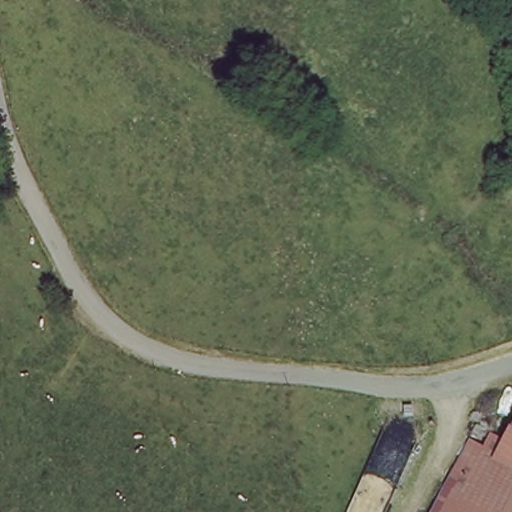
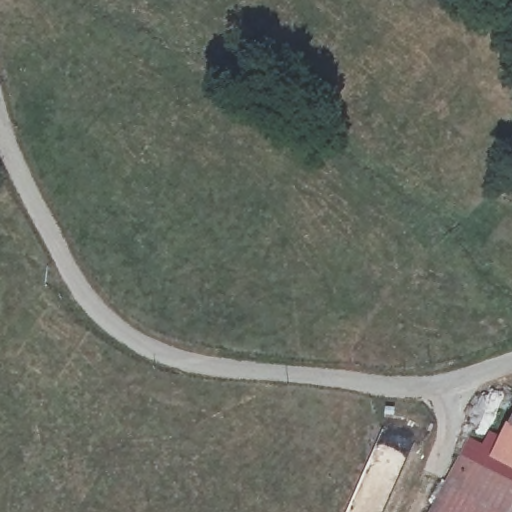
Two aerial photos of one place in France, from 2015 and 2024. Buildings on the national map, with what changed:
unchanged [(512,464),(500,458),(512,431),(512,464)]
unchanged [(512,464),(512,512),(433,512),(471,442),(500,458),(512,464)]

